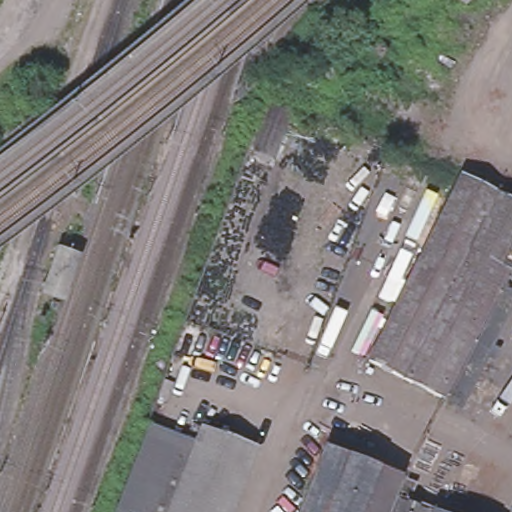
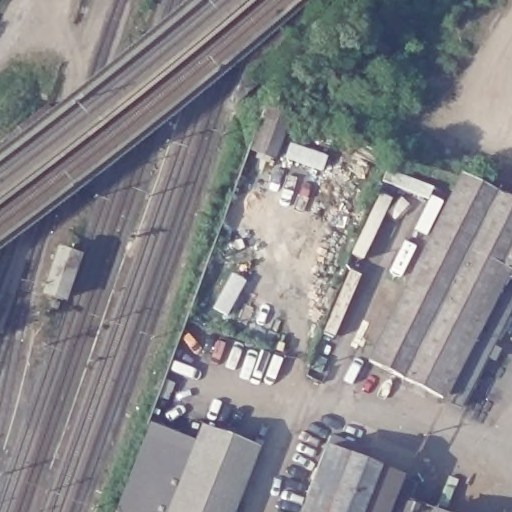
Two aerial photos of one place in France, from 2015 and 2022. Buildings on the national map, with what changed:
unchanged [(322,66),(336,59),(346,77),(332,85),(322,66)]
unchanged [(274,108),(294,115),(277,161),(258,154),(274,108)]
unchanged [(442,396),(370,360),(462,175),(512,201),(512,247),(503,264),(509,267),(508,270),(499,285),(501,285),(512,292),(512,310),(464,407),(442,396)]
unchanged [(61,298),(42,291),(58,247),(78,254),(61,298)]
unchanged [(508,270),(509,267),(503,264),(512,247),(512,272),(508,270)]
unchanged [(116,512),(149,430),(197,449),(172,512),(116,512)]
unchanged [(253,454),(230,512),(172,512),(197,449),(203,434),(253,454)]
unchanged [(408,501),(393,495),(391,498),(386,512),(299,512),(326,446),(329,436),(353,445),(366,450),(361,461),(399,476),(415,482),(408,501)]
unchanged [(425,512),(386,512),(391,498),(425,512)]
unchanged [(512,510),(512,512),(507,512),(508,508),(512,510)]

